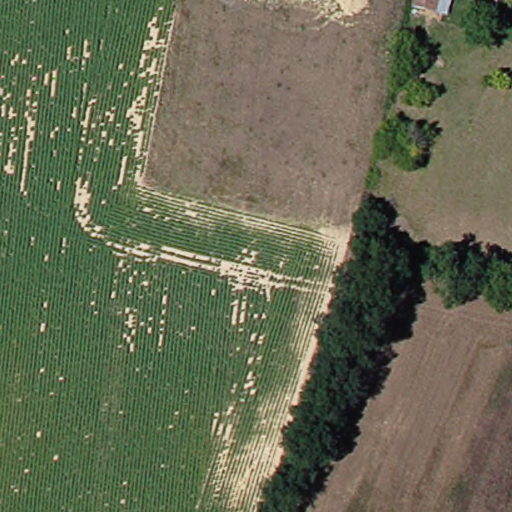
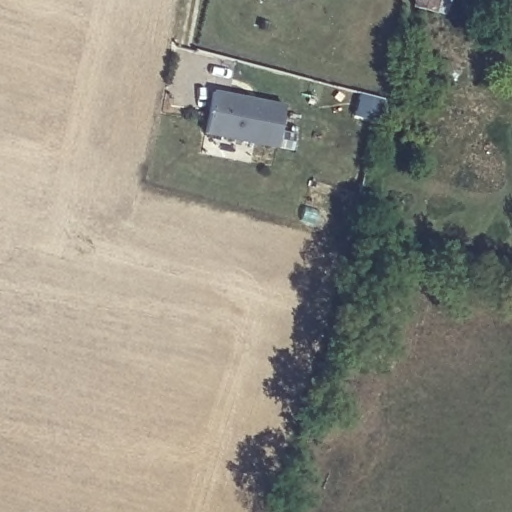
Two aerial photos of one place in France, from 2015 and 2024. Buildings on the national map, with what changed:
unchanged [(431,10),(409,6),(410,0),(433,0),(431,10)]
new [(212,93),(284,108),(276,149),(205,134),(212,93)]

